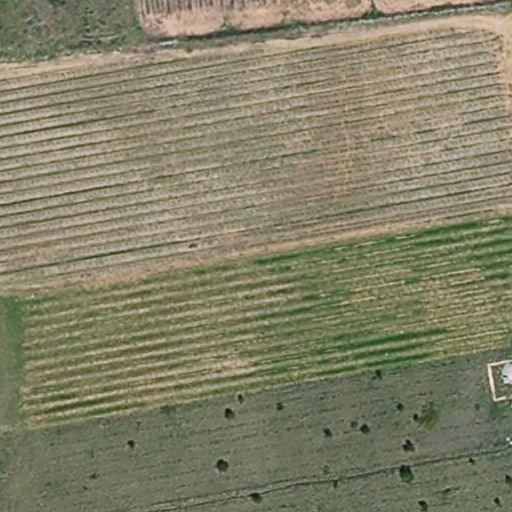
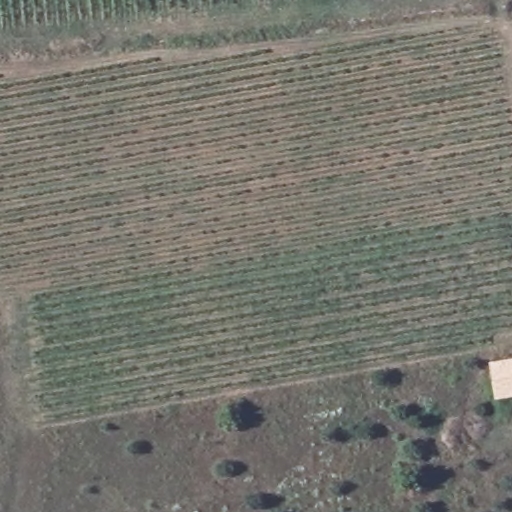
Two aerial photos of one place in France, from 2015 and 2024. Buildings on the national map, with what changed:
new [(512,361),(512,399),(495,402),(489,365),(512,361)]

